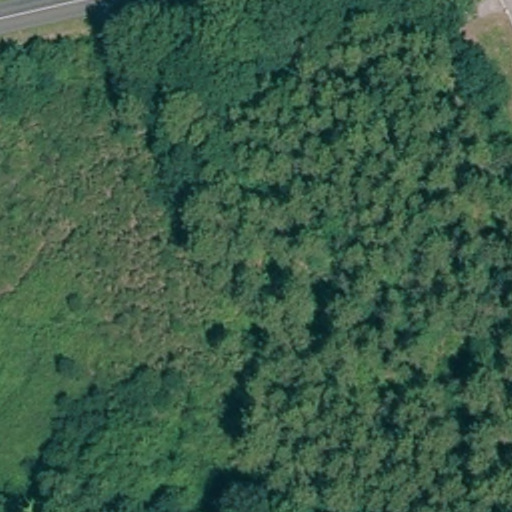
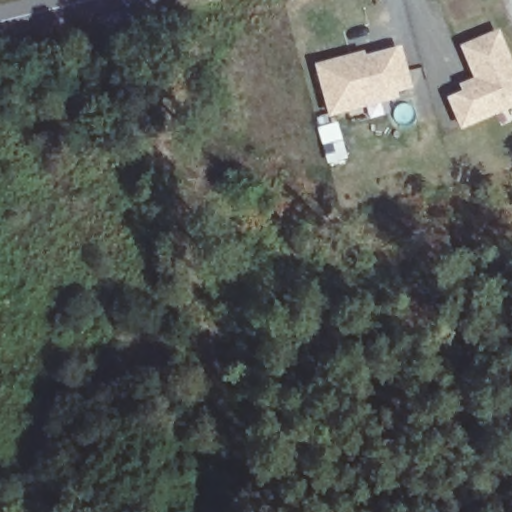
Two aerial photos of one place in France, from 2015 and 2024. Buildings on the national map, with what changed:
new [(512,62),(512,109),(461,130),(446,98),(459,91),(456,85),(473,79),(459,46),(499,31),(512,62)]
new [(363,50),(366,56),(400,47),(412,88),(396,93),(399,99),(329,119),(314,64),(363,50)]

